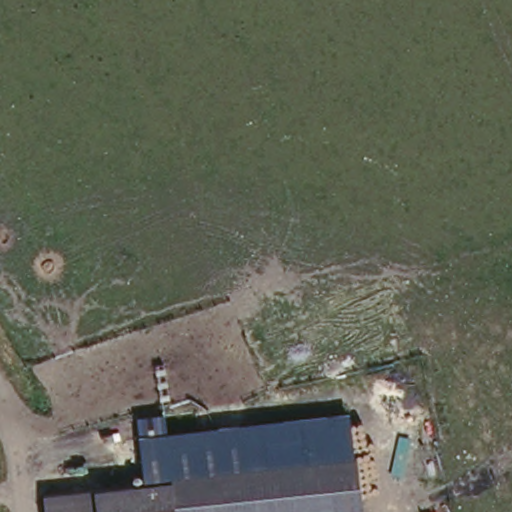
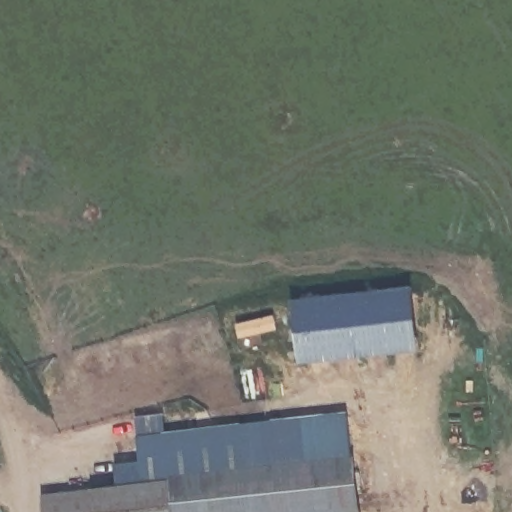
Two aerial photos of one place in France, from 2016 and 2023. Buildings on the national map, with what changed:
new [(413,290),(420,348),(300,362),(292,300),(413,290)]
unchanged [(144,483),(138,435),(136,418),(164,414),(165,433),(349,411),(355,458),(144,483)]
unchanged [(41,494),(95,489),(355,458),(361,512),(43,512),(41,494)]

